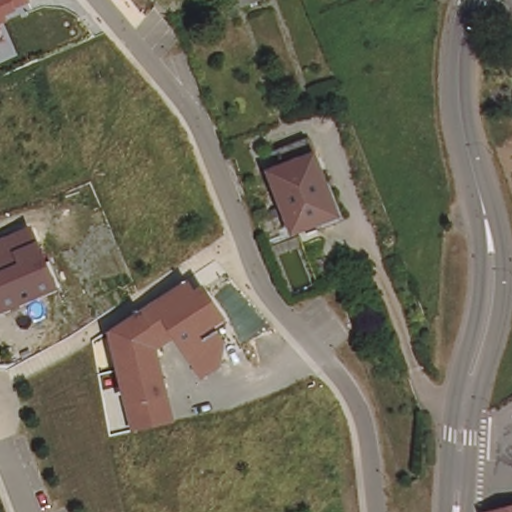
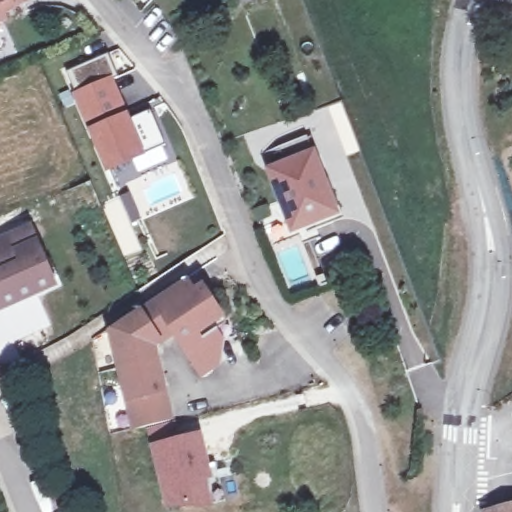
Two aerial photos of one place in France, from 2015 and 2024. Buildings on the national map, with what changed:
unchanged [(19,5),(21,10),(10,14),(12,19),(4,23),(5,28),(0,39),(0,0),(29,0),(19,5)]
new [(71,94),(74,93),(65,71),(107,53),(117,78),(114,79),(127,113),(130,119),(150,110),(163,144),(145,154),(146,155),(105,174),(87,129),(71,94)]
unchanged [(334,217),(335,223),(318,229),(315,224),(291,234),(265,171),(286,163),(280,145),(306,134),(327,184),(339,215),(334,217)]
unchanged [(2,315),(0,312),(0,237),(31,224),(60,290),(2,315)]
unchanged [(198,290),(205,285),(228,320),(219,327),(225,337),(220,363),(197,376),(176,338),(162,353),(176,424),(132,432),(112,334),(189,279),(198,290)]
new [(176,424),(179,437),(202,432),(212,480),(207,482),(213,504),(209,507),(165,508),(150,444),(146,429),(176,424)]
unchanged [(486,508),(512,500),(512,512),(487,512),(486,508)]
unchanged [(487,512),(484,512),(482,508),(486,508),(487,512)]

